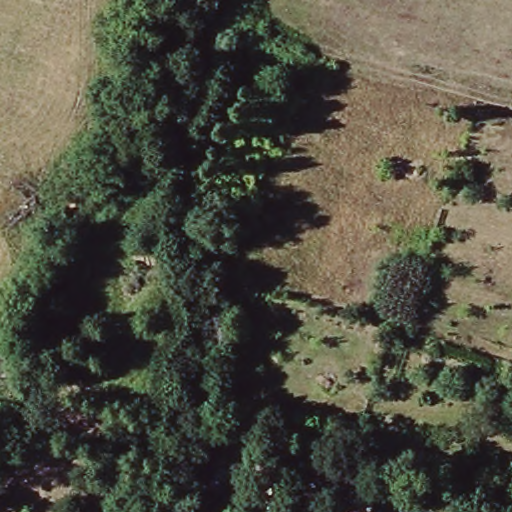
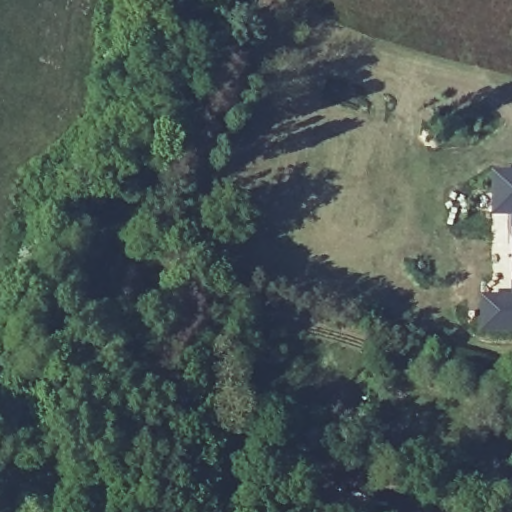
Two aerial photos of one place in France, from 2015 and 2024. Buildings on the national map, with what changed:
new [(476,295),(508,294),(509,286),(509,229),(509,217),(489,217),(489,172),(512,172),(512,334),(477,334),(476,295)]
new [(361,493),(386,503),(383,512),(354,512),(361,493)]

